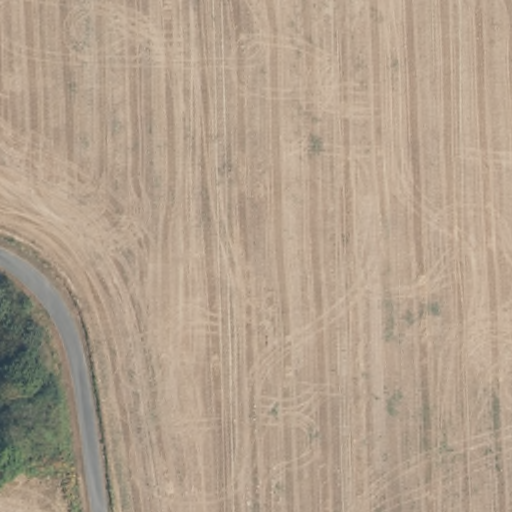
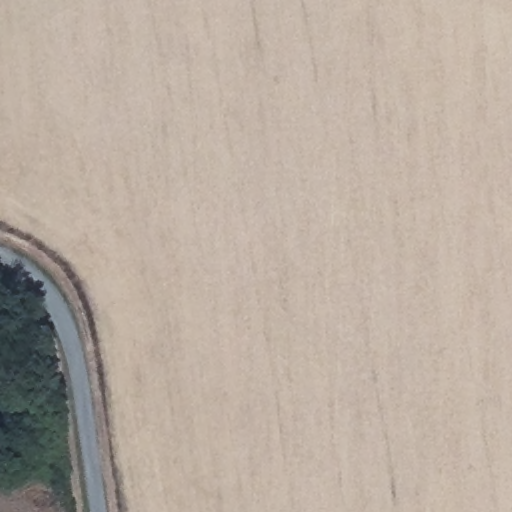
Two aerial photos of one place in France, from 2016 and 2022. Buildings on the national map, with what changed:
[]

